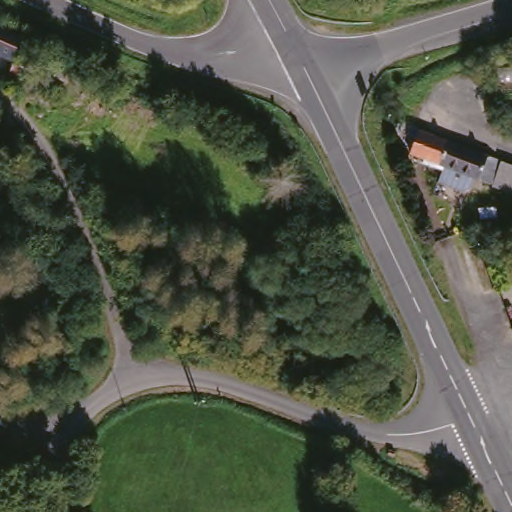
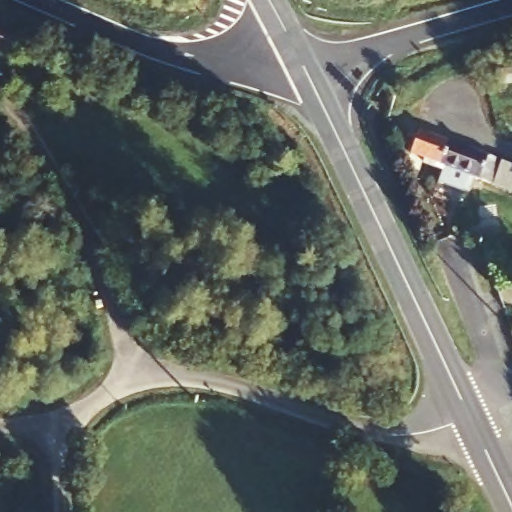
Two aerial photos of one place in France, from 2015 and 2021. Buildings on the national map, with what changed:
unchanged [(13,71),(0,66),(0,31),(25,42),(13,71)]
unchanged [(468,192),(448,184),(445,178),(449,167),(404,150),(413,127),(499,159),(491,183),(479,178),(474,189),(468,192)]
unchanged [(0,174),(0,148),(7,150),(1,174),(0,174)]

